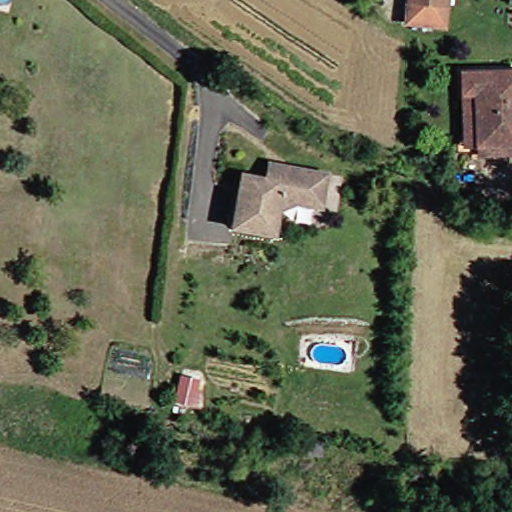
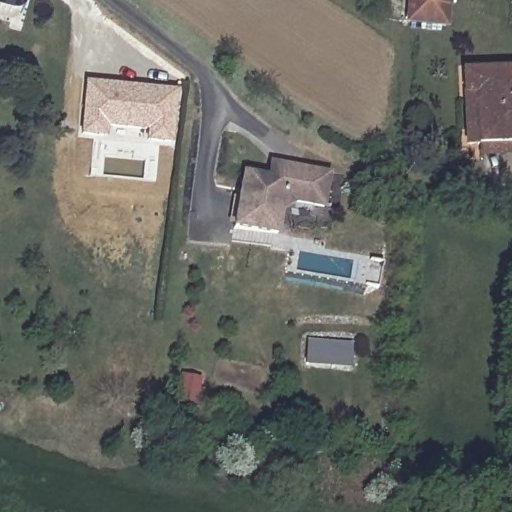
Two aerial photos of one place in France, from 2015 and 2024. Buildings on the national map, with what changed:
unchanged [(442,5),(440,26),(401,22),(402,12),(404,0),(442,0),(442,5)]
unchanged [(511,0),(512,0),(512,5),(510,5),(511,0)]
unchanged [(478,146),(466,146),(465,95),(463,71),(512,70),(512,153),(479,154),(478,146)]
new [(145,132),(107,129),(106,139),(79,137),(85,81),(177,92),(170,147),(145,144),(145,132)]
unchanged [(317,208),(290,203),(275,212),(271,236),(229,227),(237,175),(264,180),(265,175),(266,165),(283,168),(323,174),(317,208)]

